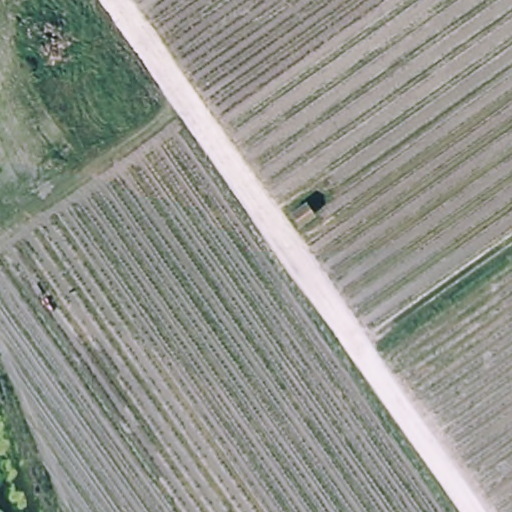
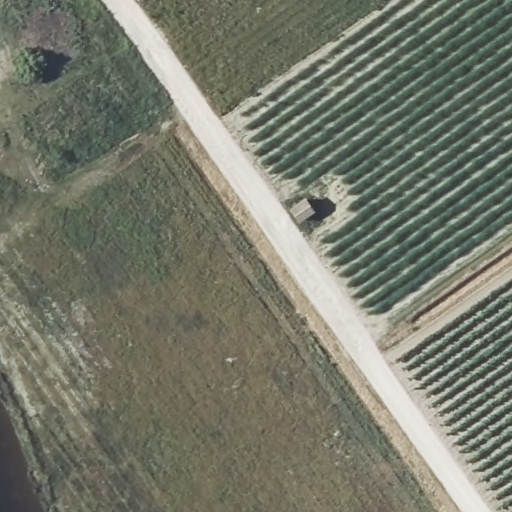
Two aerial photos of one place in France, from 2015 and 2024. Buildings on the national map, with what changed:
unchanged [(314,210),(299,221),(292,210),(307,200),(314,210)]

